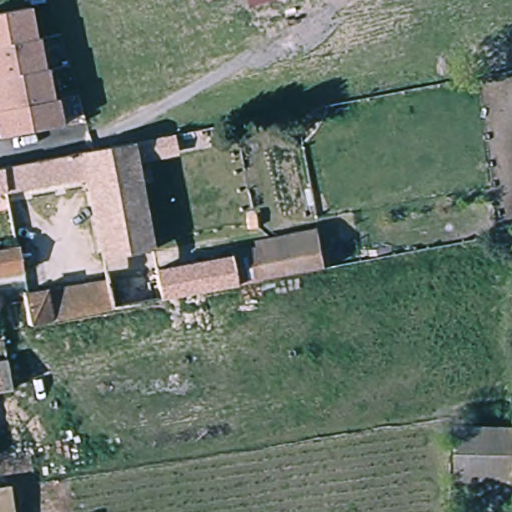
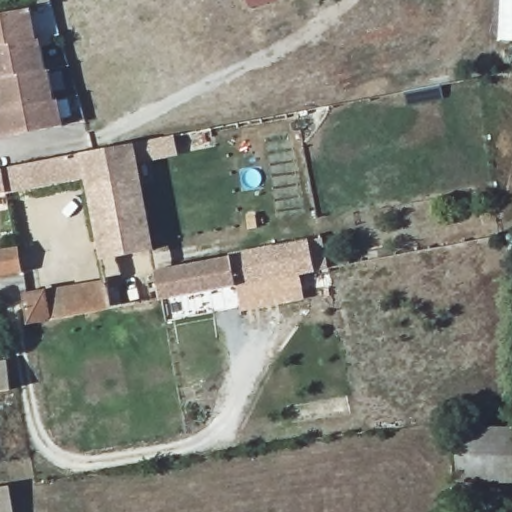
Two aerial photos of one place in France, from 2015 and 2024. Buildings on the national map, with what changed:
unchanged [(249,7),(247,0),(271,0),(249,7)]
new [(504,0),(512,0),(512,40),(502,39),(504,0)]
unchanged [(0,138),(0,13),(29,7),(36,38),(40,37),(46,68),(48,67),(54,98),(59,97),(64,123),(0,138)]
unchanged [(23,161),(100,147),(138,141),(138,142),(146,179),(163,268),(322,235),(329,266),(308,270),(246,282),(188,294),(112,308),(30,324),(24,295),(27,294),(106,279),(89,181),(10,194),(7,178),(5,165),(23,161)]
unchanged [(2,166),(5,165),(7,178),(10,194),(0,196),(0,166),(2,166)]
unchanged [(13,252),(16,252),(21,276),(18,277),(0,280),(0,254),(13,252)]
unchanged [(0,394),(0,367),(9,365),(12,392),(0,394)]
unchanged [(512,429),(512,483),(462,486),(460,433),(468,433),(466,419),(482,419),(482,431),(512,429)]
unchanged [(17,512),(0,512),(0,491),(14,488),(17,512)]

